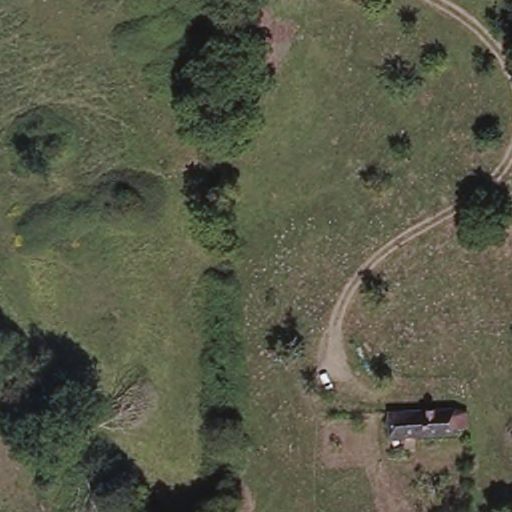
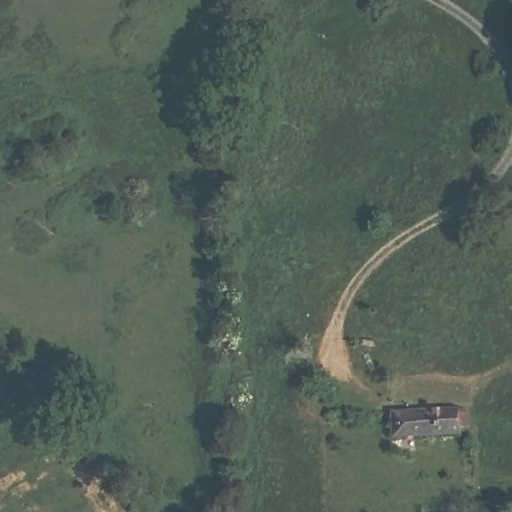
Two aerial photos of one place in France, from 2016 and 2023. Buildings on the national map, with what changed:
unchanged [(386,405),(467,405),(468,434),(388,436),(386,405)]

